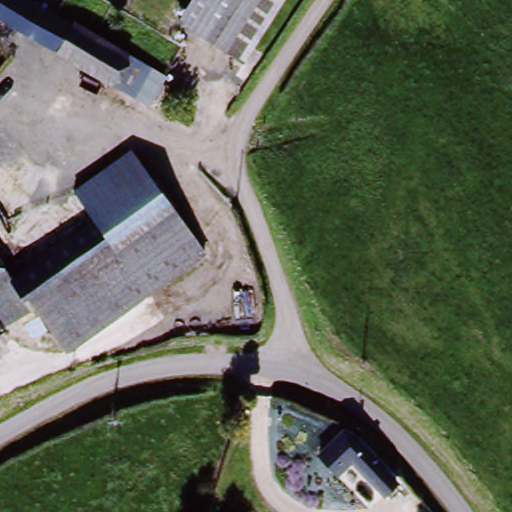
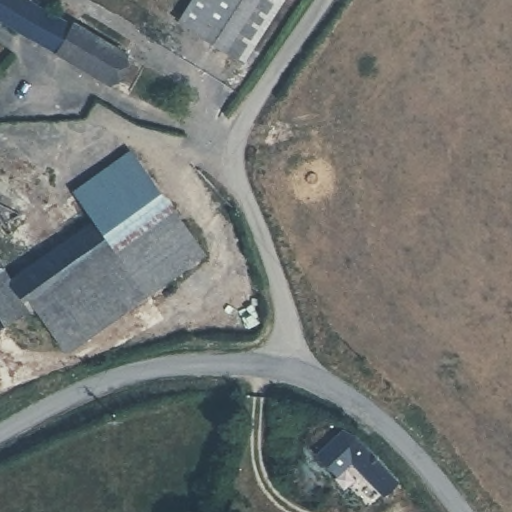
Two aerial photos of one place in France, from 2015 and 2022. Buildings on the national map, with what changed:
unchanged [(0,22),(0,0),(21,0),(94,44),(99,37),(119,52),(103,76),(101,80),(0,22)]
unchanged [(215,44),(180,21),(194,0),(243,0),(215,44)]
unchanged [(243,0),(287,0),(245,63),(215,44),(243,0)]
unchanged [(119,52),(165,78),(147,104),(103,76),(119,52)]
unchanged [(14,279),(104,222),(85,193),(144,156),(212,264),(70,353),(40,305),(34,310),(14,279)]
unchanged [(0,309),(0,258),(14,279),(34,310),(10,325),(0,309)]
unchanged [(396,478),(384,489),(341,441),(355,429),(396,478)]

